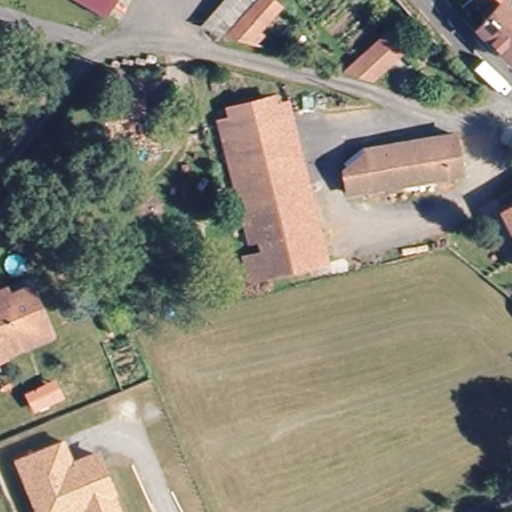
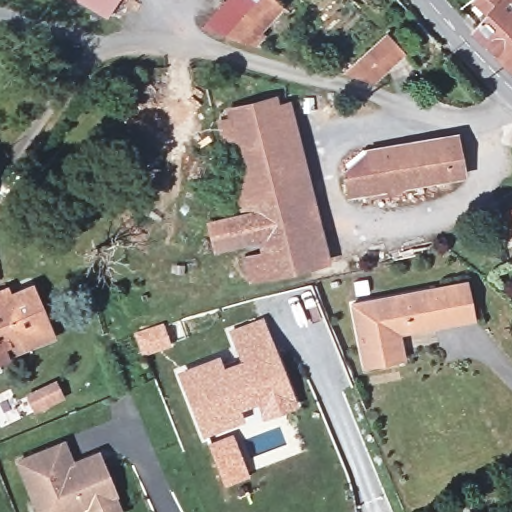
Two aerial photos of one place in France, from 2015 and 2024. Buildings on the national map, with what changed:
unchanged [(114,6),(109,16),(79,0),(117,0),(114,6)]
unchanged [(283,8),(246,45),(202,24),(224,0),(273,0),(283,8)]
unchanged [(512,56),(480,28),(495,11),(483,0),(512,0),(512,56)]
unchanged [(371,79),(347,74),(382,41),(395,55),(371,79)]
unchanged [(313,267),(254,281),(247,258),(256,256),(254,245),(210,257),(201,219),(245,208),(230,143),(226,128),(295,111),(314,196),(315,199),(329,263),(313,267)]
unchanged [(355,194),(350,169),(365,161),(364,155),(371,154),(370,149),(454,137),(461,178),(355,194)]
unchanged [(512,212),(512,225),(506,215),(512,212)]
new [(476,321),(401,334),(405,363),(362,369),(350,303),(467,280),(476,321)]
unchanged [(10,356),(0,359),(0,292),(13,287),(17,298),(40,289),(57,326),(61,335),(10,356)]
new [(300,405),(262,420),(255,404),(240,409),(245,421),(204,436),(177,371),(219,355),(223,366),(240,361),(227,331),(262,318),(300,405)]
unchanged [(100,451),(125,512),(84,512),(84,511),(81,512),(36,512),(15,460),(66,439),(74,462),(100,451)]

